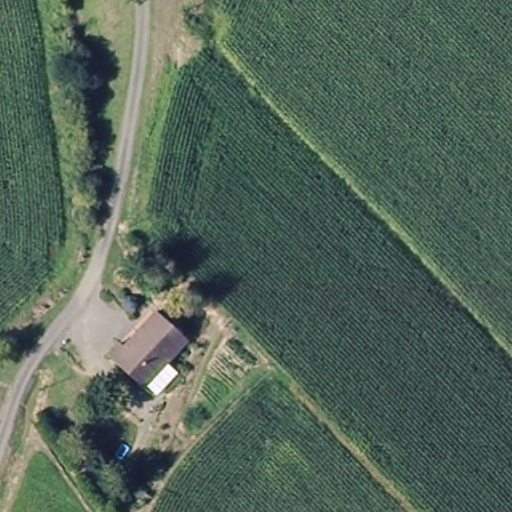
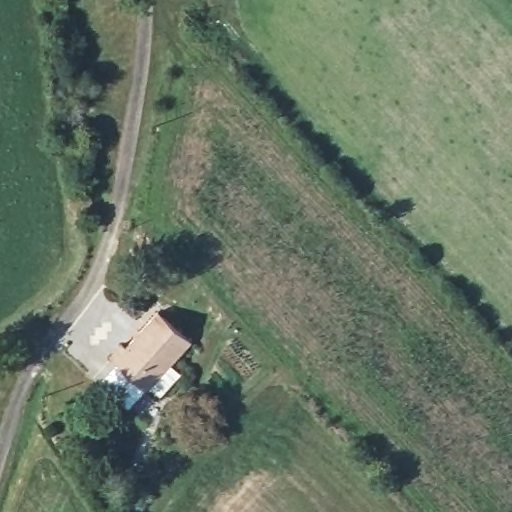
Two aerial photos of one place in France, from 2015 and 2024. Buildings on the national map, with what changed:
unchanged [(186,378),(164,399),(153,389),(151,391),(115,354),(128,341),(134,346),(165,316),(197,347),(176,368),(186,378)]

